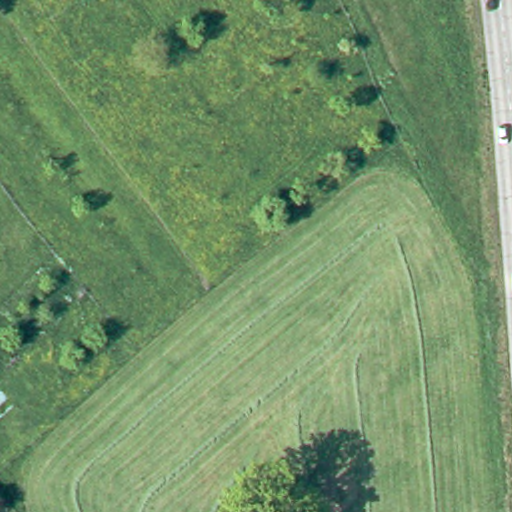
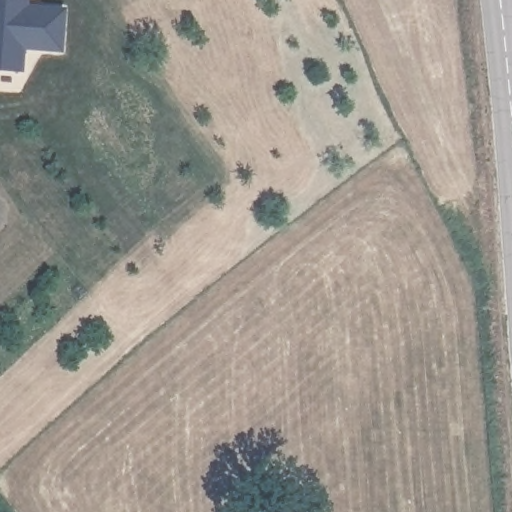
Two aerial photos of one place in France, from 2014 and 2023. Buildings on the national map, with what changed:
new [(27,0),(27,4),(65,7),(62,52),(23,50),(22,72),(0,70),(0,0),(27,0)]

